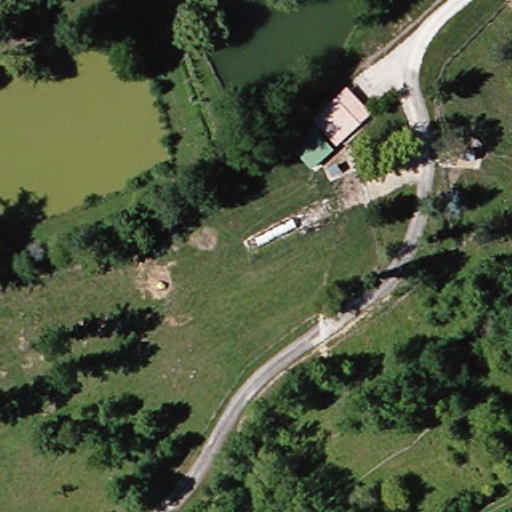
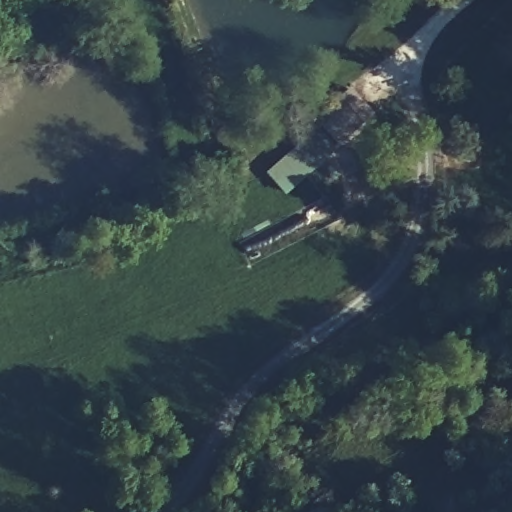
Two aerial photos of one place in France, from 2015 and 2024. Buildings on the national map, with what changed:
unchanged [(340,92),(366,119),(331,156),(305,127),(340,92)]

